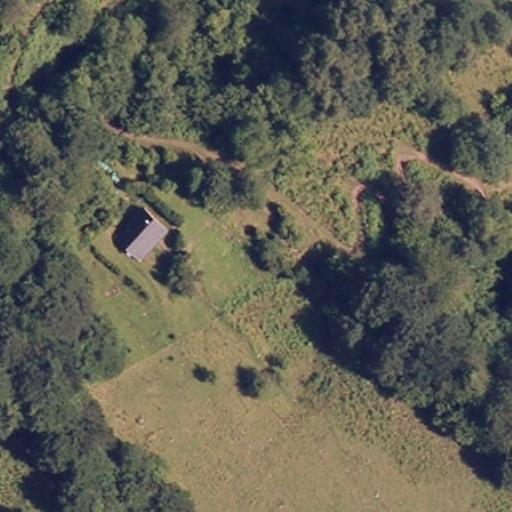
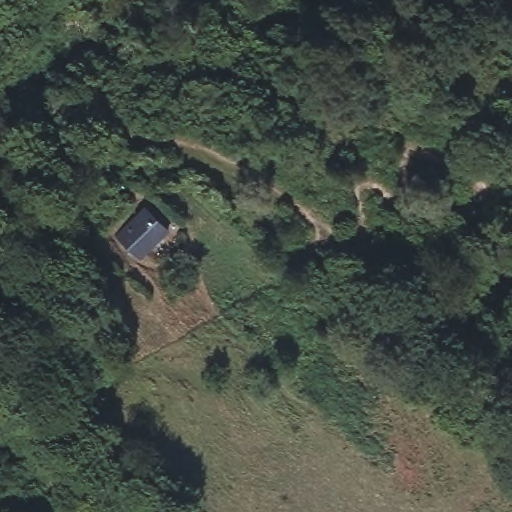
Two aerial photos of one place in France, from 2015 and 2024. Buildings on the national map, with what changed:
unchanged [(150,204),(174,225),(143,257),(116,234),(150,204)]

